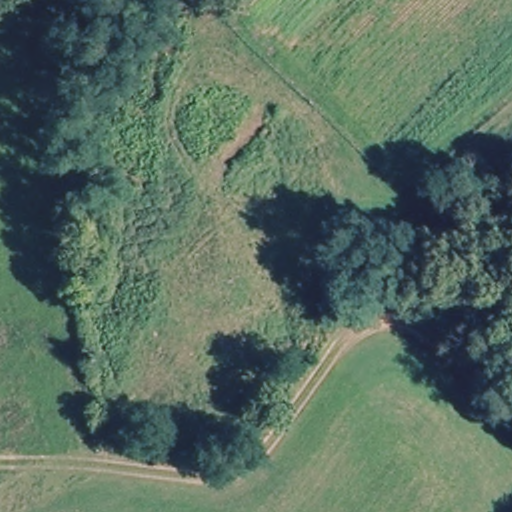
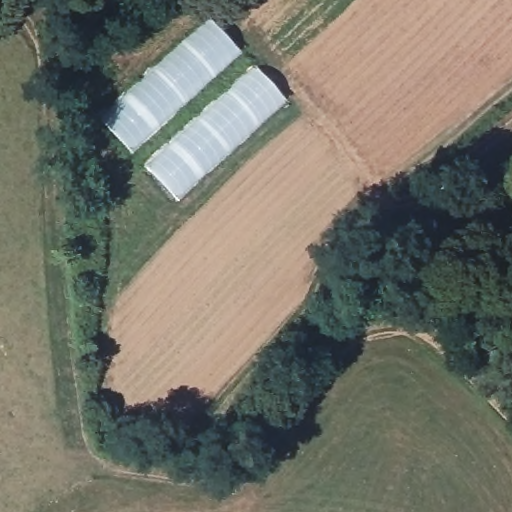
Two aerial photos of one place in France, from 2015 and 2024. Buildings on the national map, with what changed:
new [(148,70),(210,17),(242,52),(131,153),(99,117),(148,70)]
new [(254,64),(287,100),(176,199),(144,164),(254,64)]

